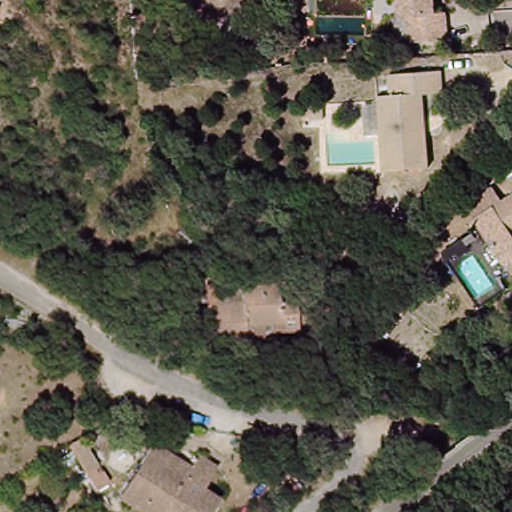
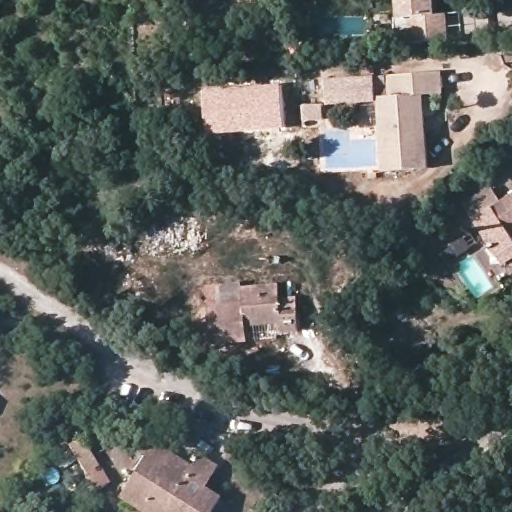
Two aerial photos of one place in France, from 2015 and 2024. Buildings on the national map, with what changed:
unchanged [(415,17),(402,17),(400,0),(438,0),(440,14),(451,12),(454,38),(418,42),(415,17)]
new [(367,16),(368,34),(329,35),(328,19),(367,16)]
unchanged [(380,97),(395,92),(394,76),(445,71),(446,91),(426,95),(432,166),(385,171),(380,97)]
new [(395,92),(380,97),(380,102),(328,104),(327,79),(394,76),(395,92)]
new [(240,81),(281,81),(285,127),(206,136),(202,84),(240,81)]
unchanged [(462,210),(488,191),(498,205),(512,195),(512,272),(508,276),(501,266),(501,265),(462,210)]
unchanged [(281,301),(300,300),(301,331),(281,331),(281,326),(249,326),(249,343),(210,344),(209,300),(209,285),(244,285),(280,284),(281,301)]
unchanged [(452,288),(467,310),(452,321),(436,300),(452,288)]
unchanged [(90,471),(81,476),(63,446),(73,440),(90,471)]
unchanged [(196,492),(213,504),(208,512),(137,512),(116,497),(143,457),(151,446),(183,468),(190,458),(209,472),(196,492)]

